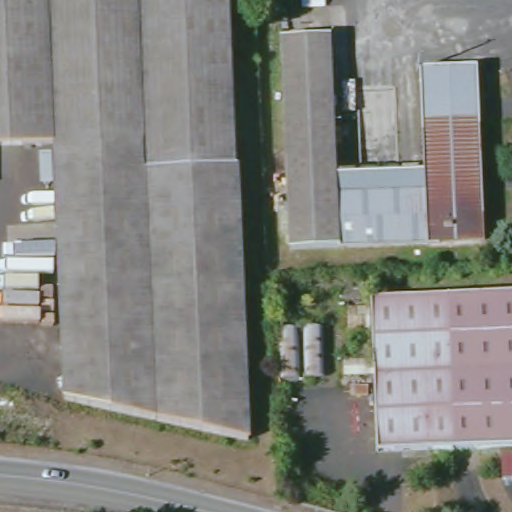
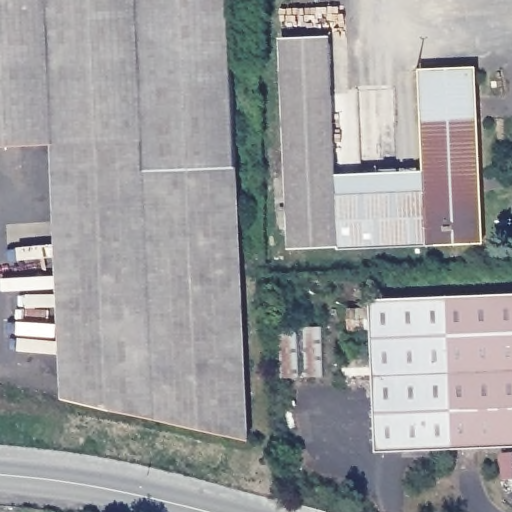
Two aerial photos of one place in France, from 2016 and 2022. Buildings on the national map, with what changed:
unchanged [(63,396),(54,143),(0,145),(0,0),(230,0),(247,438),(63,396)]
unchanged [(277,38),(325,36),(331,192),(421,189),(417,70),(469,68),(475,238),(286,246),(277,38)]
unchanged [(512,295),(512,445),(378,452),(371,302),(512,295)]

